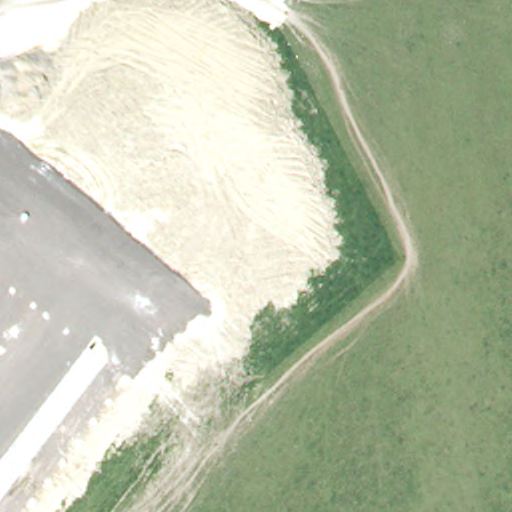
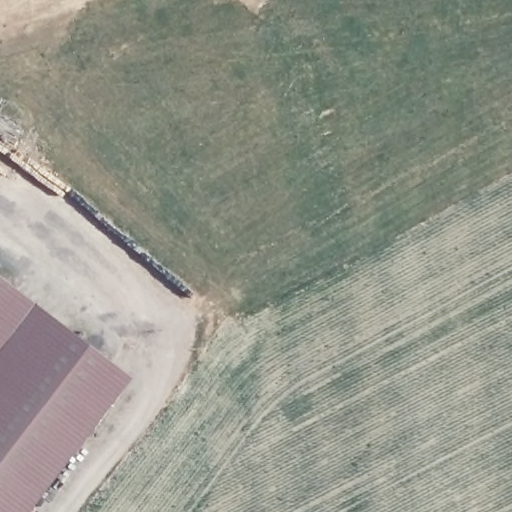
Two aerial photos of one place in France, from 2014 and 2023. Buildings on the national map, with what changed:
new [(0,353),(0,276),(37,305),(0,353)]
new [(0,512),(0,353),(37,305),(132,378),(30,512),(0,512)]

